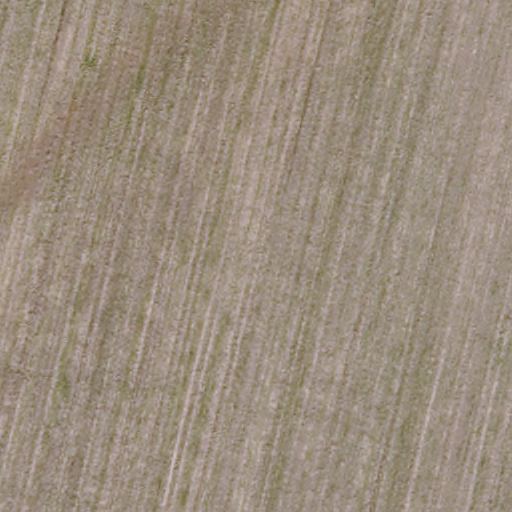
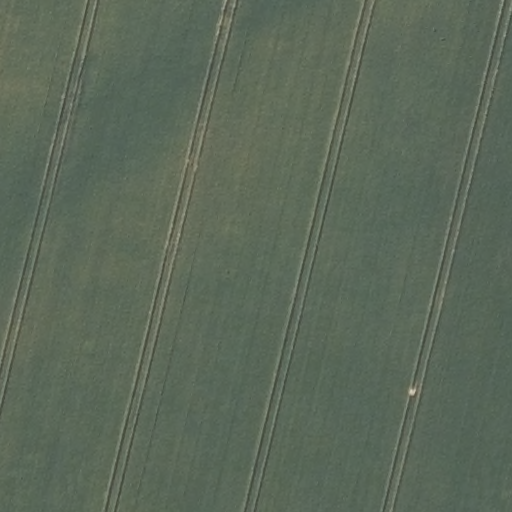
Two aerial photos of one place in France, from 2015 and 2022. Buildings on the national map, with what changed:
[]

